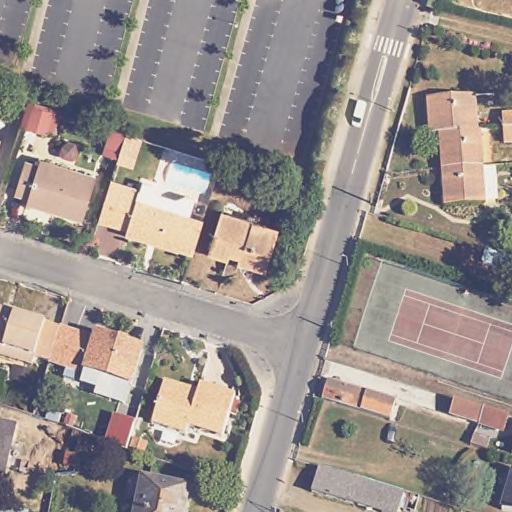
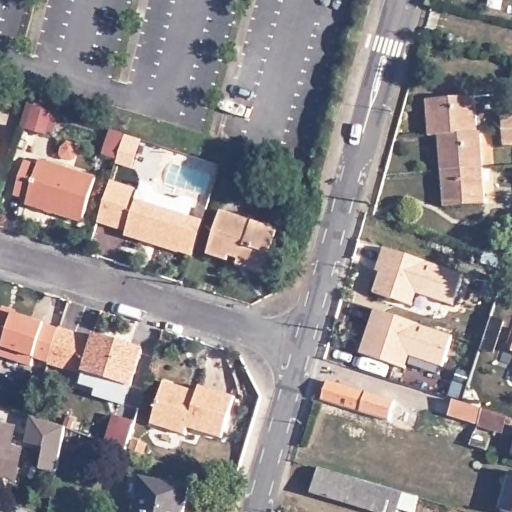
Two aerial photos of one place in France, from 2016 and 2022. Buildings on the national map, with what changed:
unchanged [(428,98),(476,95),(478,130),(442,133),(430,134),(428,98)]
unchanged [(501,129),(500,115),(512,114),(512,142),(502,143),(501,129)]
unchanged [(442,133),(478,130),(481,130),(483,166),(449,169),(444,169),(442,133)]
unchanged [(135,142),(129,164),(114,159),(120,138),(135,142)]
unchanged [(2,146),(0,154),(0,145),(2,146)]
unchanged [(91,180),(77,222),(22,203),(24,198),(11,193),(20,165),(33,169),(36,162),(91,180)]
unchanged [(449,169),(483,166),(486,204),(446,206),(444,169),(449,169)]
unchanged [(175,251),(174,252),(121,235),(123,231),(109,227),(93,222),(97,211),(106,184),(121,189),(136,193),(139,185),(148,188),(154,196),(172,202),(181,198),(191,201),(185,220),(200,225),(190,256),(175,251)]
unchanged [(234,268),(236,261),(227,258),(225,262),(205,256),(219,213),(277,232),(264,270),(261,277),(234,268)]
new [(464,273),(454,305),(417,293),(413,305),(374,293),(380,272),(376,271),(383,246),(464,273)]
unchanged [(62,328),(62,329),(51,361),(36,356),(33,364),(19,360),(0,354),(0,307),(62,328)]
new [(375,309),(454,334),(442,367),(436,364),(430,381),(405,373),(406,368),(360,353),(375,309)]
unchanged [(97,395),(99,388),(83,382),(86,372),(51,361),(62,329),(96,340),(98,335),(144,350),(133,386),(127,405),(97,395)]
unchanged [(329,382),(395,402),(389,421),(323,400),(329,382)]
unchanged [(196,387),(232,399),(219,439),(184,428),(182,436),(147,425),(160,383),(194,393),(196,387)]
unchanged [(505,424),(504,426),(500,429),(480,423),(450,414),(454,399),(485,408),(507,415),(505,424)]
unchanged [(113,414),(133,421),(124,448),(105,441),(113,414)]
unchanged [(15,429),(2,487),(0,487),(0,425),(15,429)]
unchanged [(52,446),(42,444),(44,431),(55,433),(52,446)]
unchanged [(492,438),(488,451),(472,447),(476,434),(492,438)]
unchanged [(512,440),(512,452),(508,451),(512,440)]
unchanged [(376,512),(313,494),(320,468),(406,493),(400,512),(376,512)]
unchanged [(512,474),(512,506),(503,504),(512,474)]
unchanged [(190,493),(187,509),(186,512),(135,512),(141,483),(190,493)]

